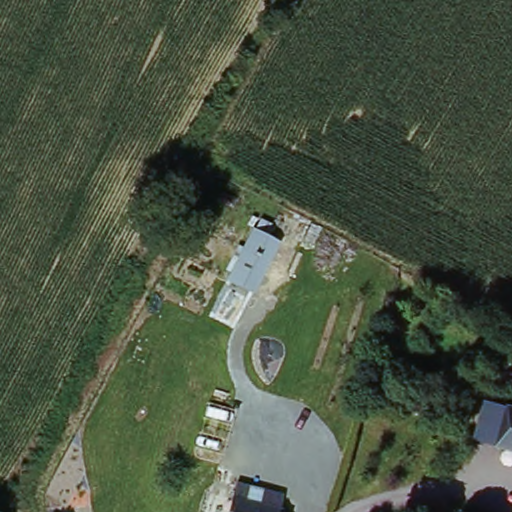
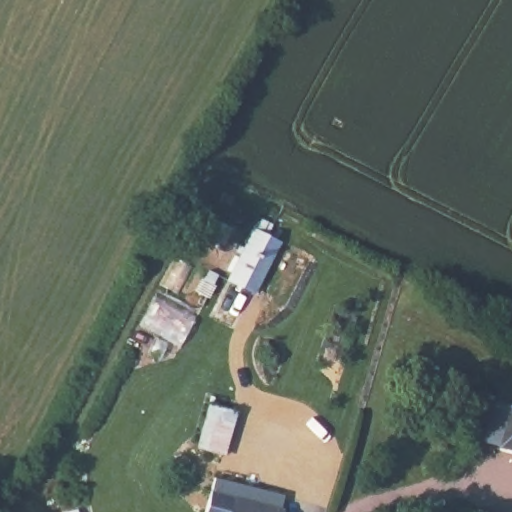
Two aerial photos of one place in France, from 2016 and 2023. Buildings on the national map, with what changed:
unchanged [(223,278),(243,242),(253,224),(278,236),(267,256),(248,291),(223,278)]
unchanged [(505,446),(480,438),(491,400),(512,406),(512,419),(505,446)]
new [(208,403),(237,412),(225,457),(196,448),(208,403)]
unchanged [(505,446),(512,419),(512,448),(505,446)]
unchanged [(236,496),(242,475),(291,487),(284,512),(207,512),(213,490),(236,496)]

